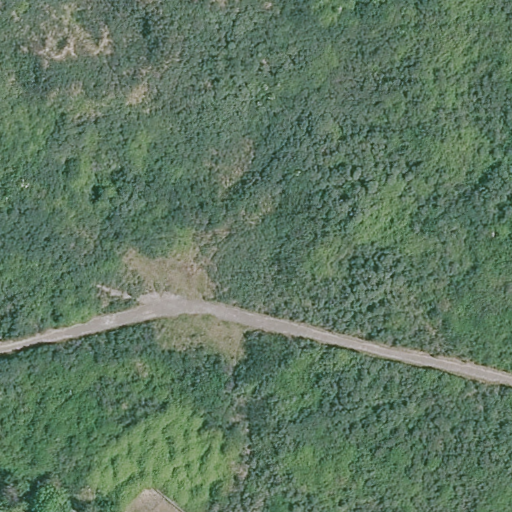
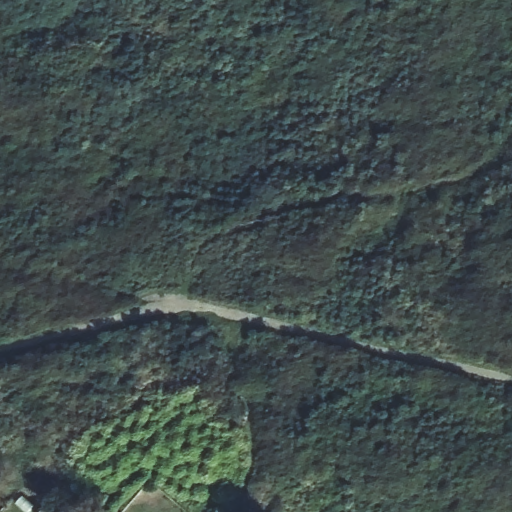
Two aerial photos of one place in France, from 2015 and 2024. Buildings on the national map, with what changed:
unchanged [(160,244),(169,269),(117,287),(105,262),(160,244)]

